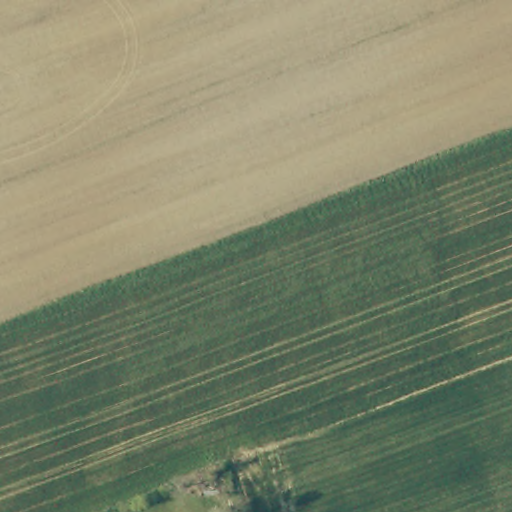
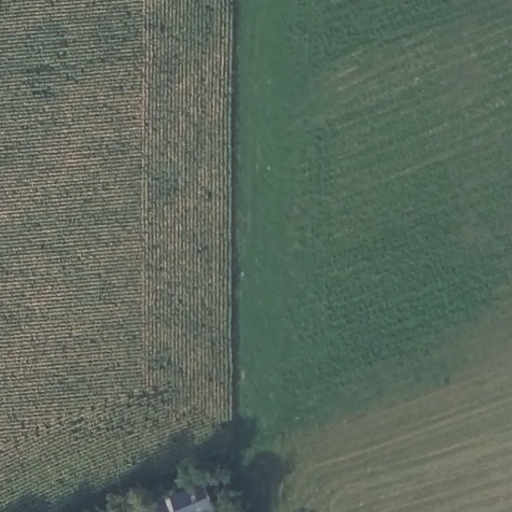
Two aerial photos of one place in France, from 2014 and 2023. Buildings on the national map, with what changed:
new [(205,487),(215,512),(167,512),(163,502),(205,487)]

